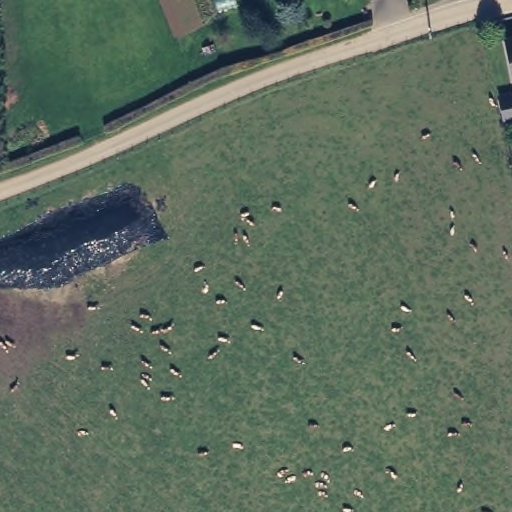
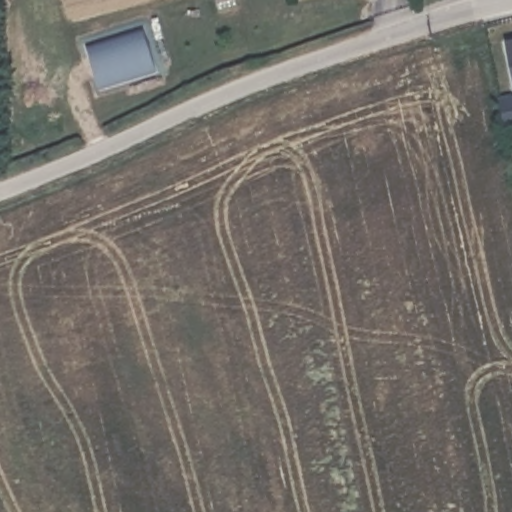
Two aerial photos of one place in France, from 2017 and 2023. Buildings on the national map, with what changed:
new [(99,90),(85,46),(143,28),(156,71),(99,90)]
unchanged [(512,40),(512,65),(507,41),(512,40)]

